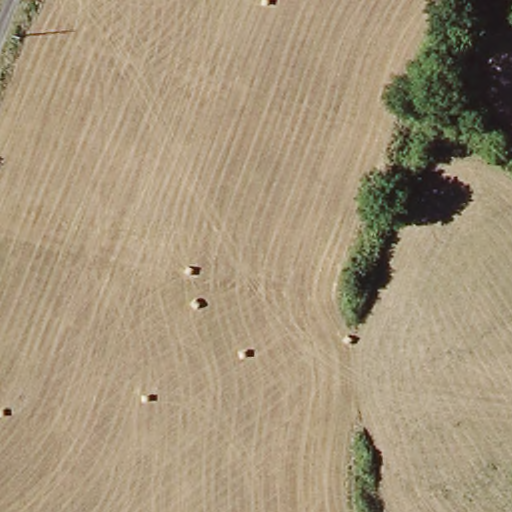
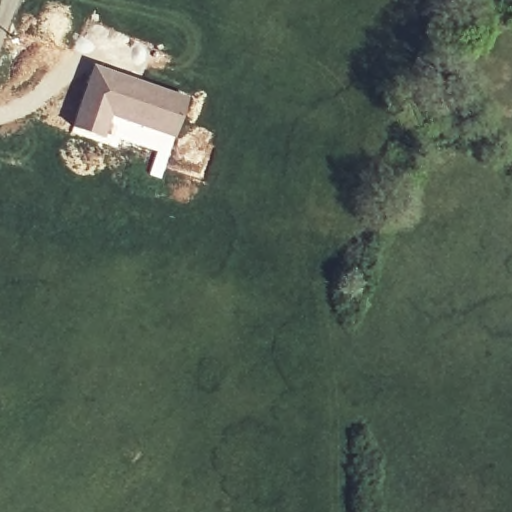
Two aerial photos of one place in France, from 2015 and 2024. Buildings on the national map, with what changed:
new [(92,61),(189,95),(175,136),(134,126),(114,119),(106,138),(70,124),(92,61)]
new [(123,132),(134,135),(134,126),(175,136),(161,178),(147,174),(156,151),(121,140),(123,132)]

